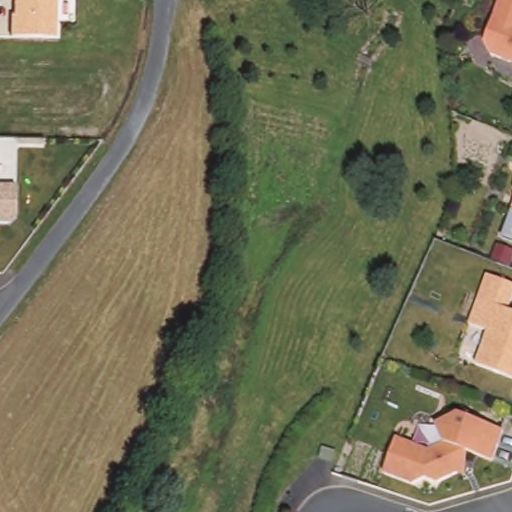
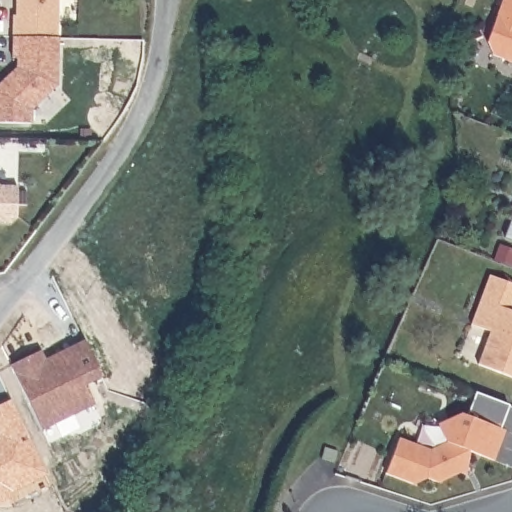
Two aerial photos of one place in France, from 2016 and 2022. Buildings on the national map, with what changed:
unchanged [(11,37),(11,14),(15,14),(15,0),(57,0),(57,38),(11,37)]
unchanged [(487,39),(502,0),(512,0),(512,58),(494,51),(487,39)]
new [(32,109),(32,124),(0,124),(0,82),(15,68),(15,58),(11,58),(11,37),(57,38),(56,86),(32,109)]
unchanged [(18,186),(17,223),(0,222),(0,186),(18,186)]
unchanged [(512,236),(500,232),(512,199),(512,236)]
unchanged [(512,279),(512,298),(510,306),(512,307),(512,372),(461,355),(490,273),(512,279)]
new [(48,360),(69,350),(87,341),(105,378),(88,386),(98,405),(45,431),(14,366),(44,351),(48,360)]
new [(16,492),(17,505),(0,506),(0,438),(1,437),(0,435),(0,407),(14,401),(47,466),(51,475),(16,492)]
unchanged [(398,435),(427,446),(447,439),(435,418),(469,410),(506,427),(496,455),(465,446),(464,470),(438,479),(426,476),(415,480),(387,468),(398,435)]

